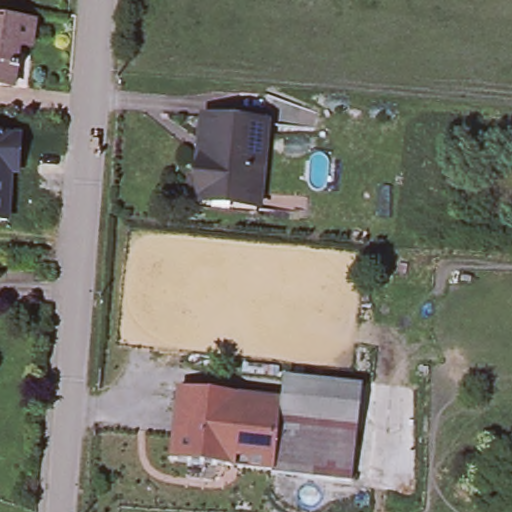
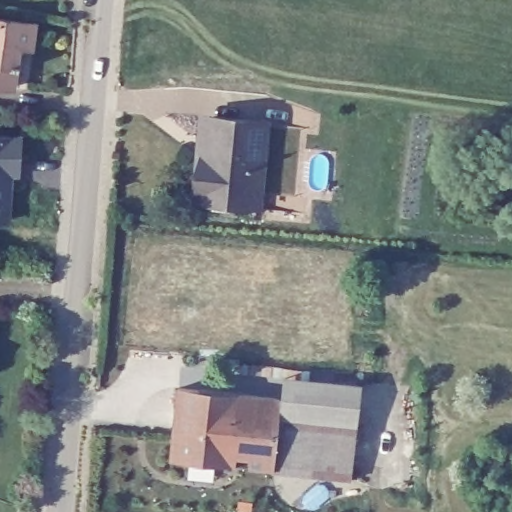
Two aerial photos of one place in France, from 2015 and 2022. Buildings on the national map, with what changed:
unchanged [(27,27),(25,51),(12,49),(6,91),(0,90),(0,23),(27,27)]
unchanged [(264,123),(257,195),(195,190),(199,161),(205,162),(210,117),(264,123)]
unchanged [(13,163),(12,175),(5,175),(2,222),(0,222),(0,138),(14,139),(13,163)]
unchanged [(257,195),(255,212),(194,208),(195,190),(257,195)]
unchanged [(215,370),(285,377),(282,402),(212,395),(215,370)]
unchanged [(360,387),(352,483),(278,477),(287,381),(360,387)]
unchanged [(159,437),(175,438),(180,391),(212,395),(282,402),(275,475),(173,464),(157,462),(159,437)]

